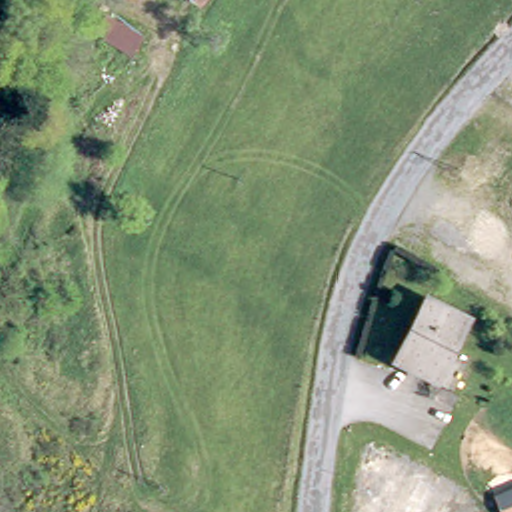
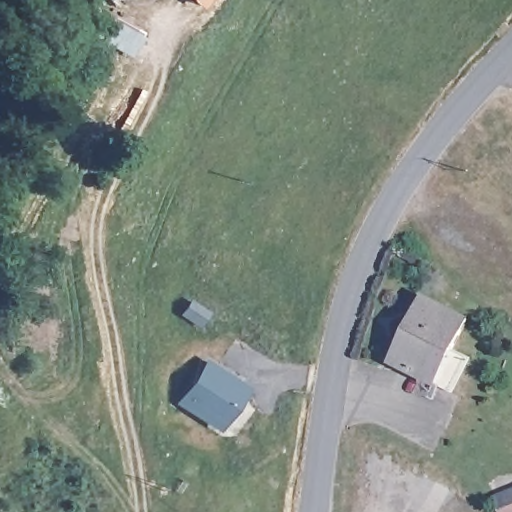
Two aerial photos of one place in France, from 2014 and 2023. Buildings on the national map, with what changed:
unchanged [(454,388),(437,379),(397,356),(428,296),(469,317),(452,349),(470,359),(454,388)]
new [(250,386),(222,431),(178,403),(207,357),(250,386)]
unchanged [(500,512),(495,497),(512,491),(512,512),(500,512)]

